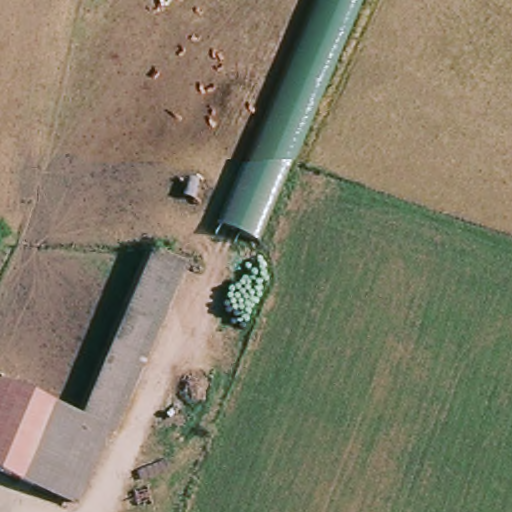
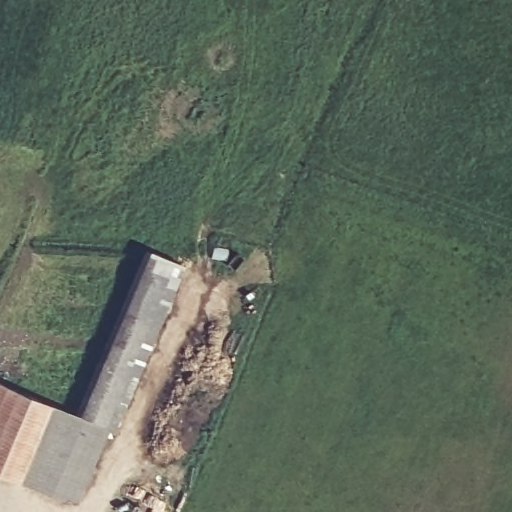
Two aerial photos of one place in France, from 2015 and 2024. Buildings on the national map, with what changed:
demolished [(232,236),(227,245),(207,238),(307,0),(357,0),(256,244),(232,236)]
unchanged [(0,471),(0,430),(8,411),(0,408),(0,407),(8,388),(74,417),(141,271),(153,243),(183,257),(176,273),(72,503),(0,471)]
unchanged [(8,388),(0,407),(0,385),(8,388)]
unchanged [(8,411),(0,430),(0,408),(8,411)]

